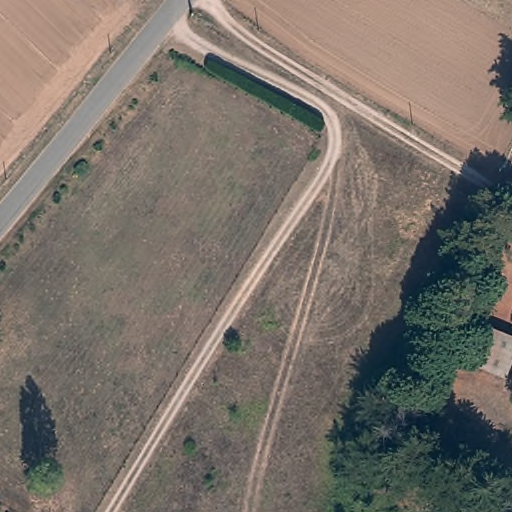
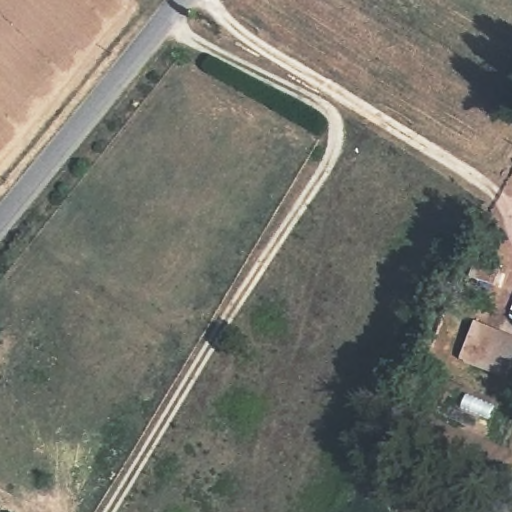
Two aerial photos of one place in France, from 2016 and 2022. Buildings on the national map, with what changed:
unchanged [(474,262),(499,271),(494,285),(468,276),(474,262)]
unchanged [(473,322),(512,338),(512,360),(505,378),(458,360),(473,322)]

